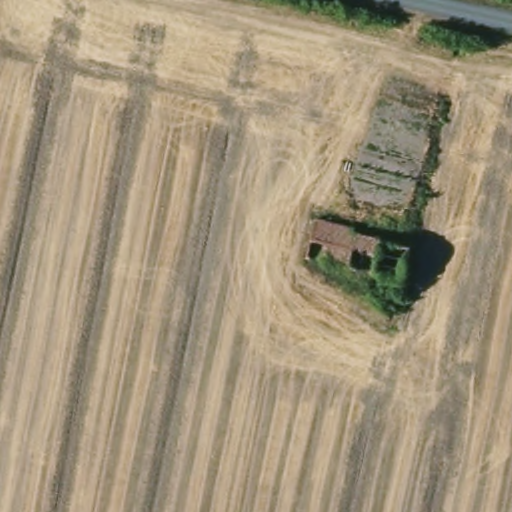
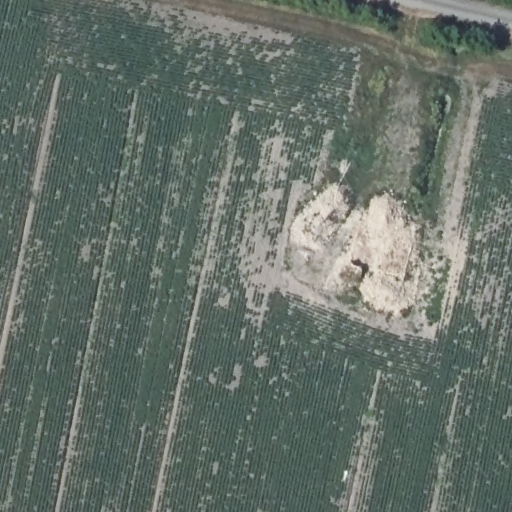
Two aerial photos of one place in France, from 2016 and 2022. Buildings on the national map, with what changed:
unchanged [(366,267),(364,272),(306,258),(315,219),(368,229),(367,234),(414,245),(406,277),(396,274),(366,267)]

